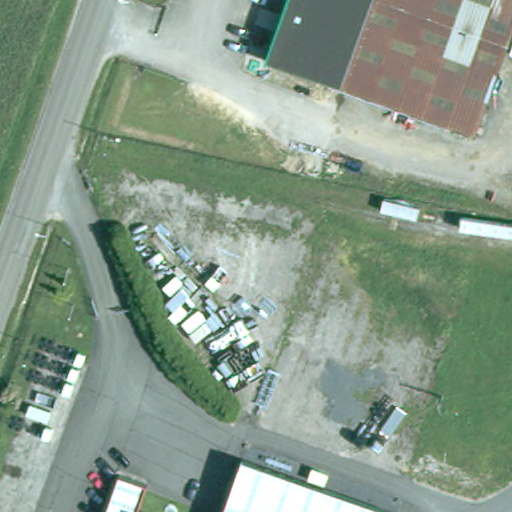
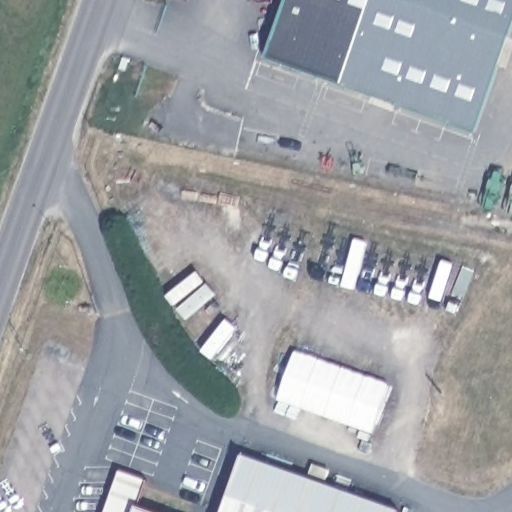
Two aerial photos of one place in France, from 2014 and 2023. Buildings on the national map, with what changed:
unchanged [(289,0),(512,0),(512,34),(478,126),(270,53),(289,0)]
new [(295,350),(391,385),(373,433),(277,400),(295,350)]
unchanged [(247,453),(404,508),(403,512),(227,512),(247,453)]
unchanged [(126,468),(151,477),(142,501),(174,512),(111,512),(126,468)]

